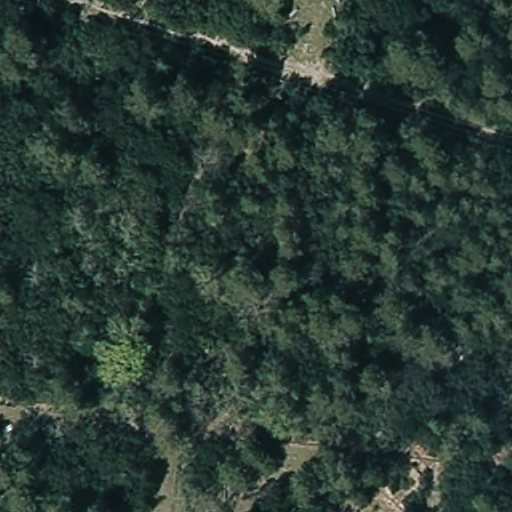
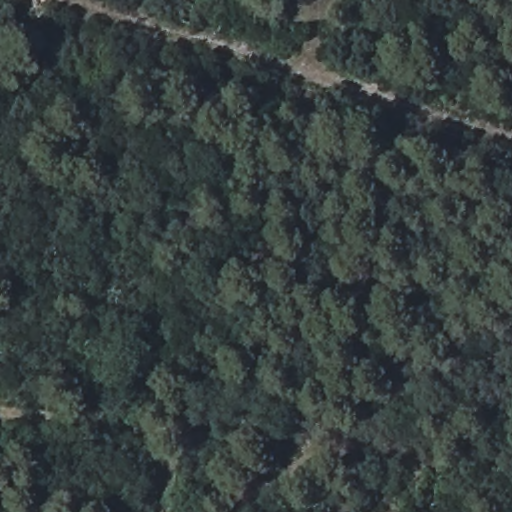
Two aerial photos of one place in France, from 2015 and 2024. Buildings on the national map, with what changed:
unchanged [(497,335),(512,323),(512,350),(497,335)]

